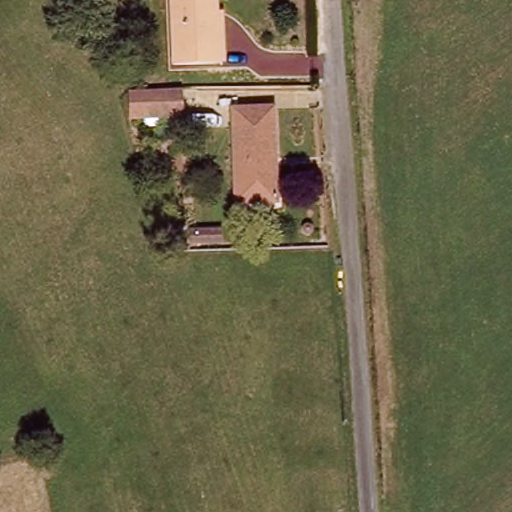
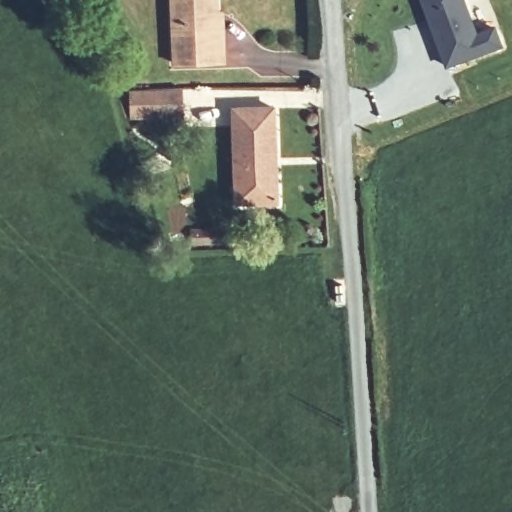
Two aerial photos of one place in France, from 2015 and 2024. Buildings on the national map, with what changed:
unchanged [(169,0),(216,0),(220,44),(221,64),(175,68),(169,0)]
new [(497,28),(504,48),(445,71),(418,0),(465,0),(480,35),(497,28)]
unchanged [(135,115),(135,88),(185,86),(185,114),(154,115),(135,115)]
unchanged [(274,192),(234,194),(230,99),(270,98),(272,149),(274,174),(274,192)]
unchanged [(187,234),(195,234),(218,233),(219,245),(197,246),(190,248),(187,234)]

